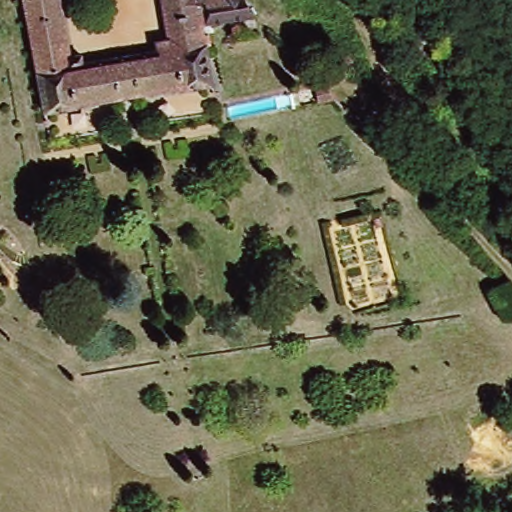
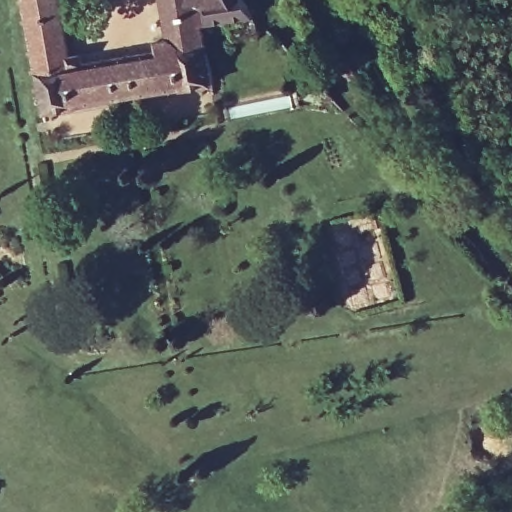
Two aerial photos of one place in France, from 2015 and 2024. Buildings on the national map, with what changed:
unchanged [(73,51),(74,60),(146,49),(145,40),(159,37),(153,0),(239,0),(244,21),(199,29),(208,84),(174,89),(174,86),(65,104),(66,107),(40,111),(21,0),(54,0),(62,54),(73,51)]
unchanged [(287,95),(242,48),(248,43),(295,93),(287,95)]

